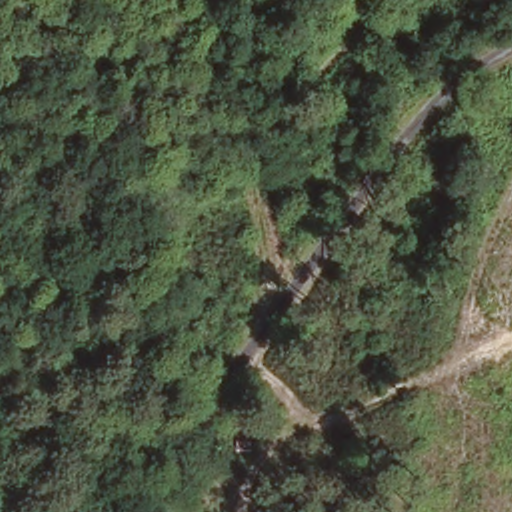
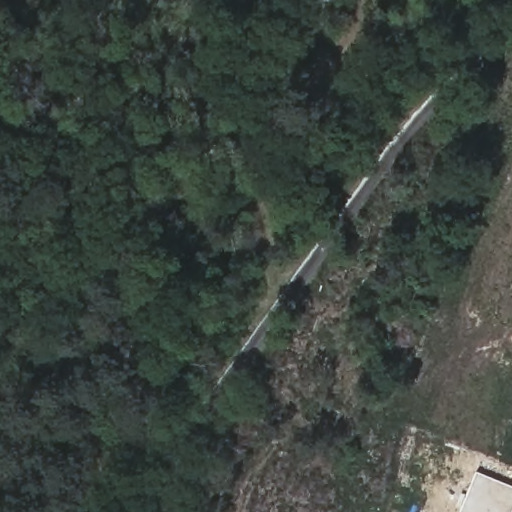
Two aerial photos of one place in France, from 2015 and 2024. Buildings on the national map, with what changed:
new [(512,487),(512,512),(459,512),(475,473),(512,487)]

